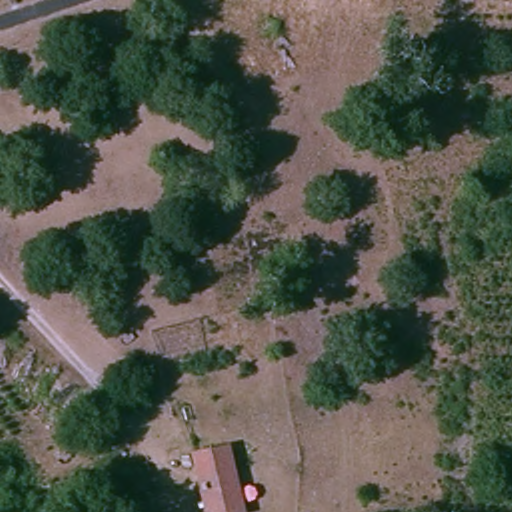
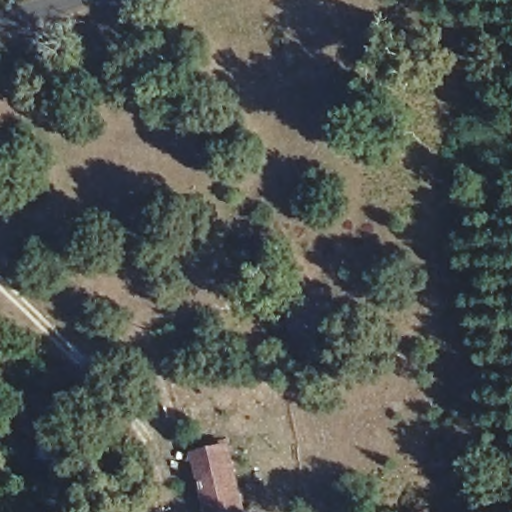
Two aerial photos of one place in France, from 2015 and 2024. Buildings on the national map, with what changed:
unchanged [(245,512),(194,512),(181,460),(229,451),(245,512)]

